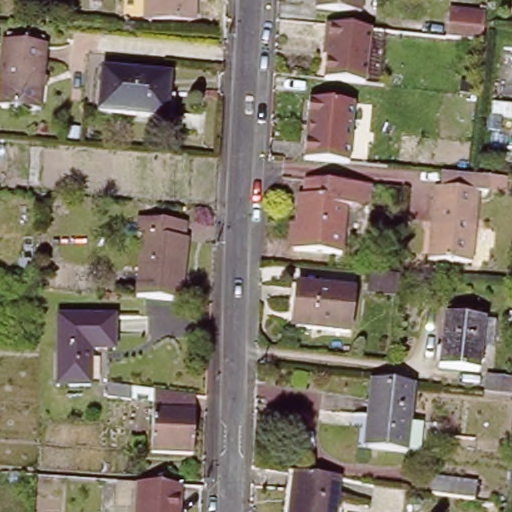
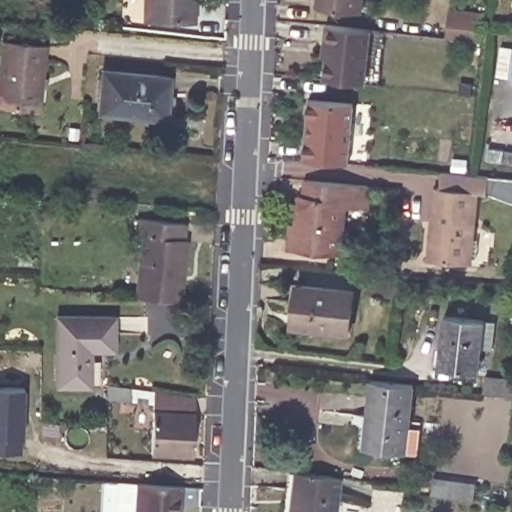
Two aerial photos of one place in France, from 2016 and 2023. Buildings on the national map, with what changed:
unchanged [(147,22),(147,0),(194,0),(194,22),(147,22)]
unchanged [(318,9),(319,0),(365,0),(363,14),(318,9)]
unchanged [(480,37),(445,34),(447,9),(448,4),(485,8),(484,13),(482,22),(480,37)]
unchanged [(363,82),(323,77),(326,53),(322,52),(323,40),(326,21),(370,26),(363,82)]
unchanged [(0,107),(0,53),(1,42),(43,46),(40,77),(37,111),(11,108),(0,107)]
unchanged [(97,85),(100,71),(166,75),(165,92),(97,85)]
unchanged [(163,119),(95,112),(97,85),(165,92),(163,119)]
unchanged [(310,100),(355,105),(349,165),(304,161),(310,100)]
unchanged [(492,192),(483,192),(476,265),(433,261),(440,188),(445,189),(446,173),(493,177),(492,192)]
unchanged [(373,210),(351,207),(347,257),(295,252),(297,227),(301,227),(304,198),(308,198),(310,182),(375,188),(373,210)]
unchanged [(145,242),(140,242),(142,224),(187,227),(185,247),(190,247),(186,305),(140,300),(145,242)]
unchanged [(358,292),(352,335),(295,327),(301,284),(358,292)]
unchanged [(61,316),(118,318),(116,356),(90,353),(87,390),(56,387),(61,316)]
unchanged [(488,323),(482,376),(443,371),(449,318),(488,323)]
unchanged [(487,377),(512,380),(512,396),(486,393),(487,377)]
unchanged [(373,418),(370,418),(375,379),(418,384),(412,427),(426,428),(425,435),(372,428),(373,418)]
unchanged [(195,460),(153,458),(156,407),(132,403),(109,400),(110,388),(134,391),(198,401),(195,460)]
new [(0,389),(25,390),(24,437),(20,437),(20,452),(0,451),(0,389)]
unchanged [(425,435),(422,454),(370,447),(372,428),(425,435)]
unchanged [(347,479),(343,512),(303,512),(308,473),(347,479)]
unchanged [(476,486),(473,501),(431,496),(433,480),(476,486)]
unchanged [(136,483),(160,485),(180,486),(179,512),(135,512),(136,483)]

